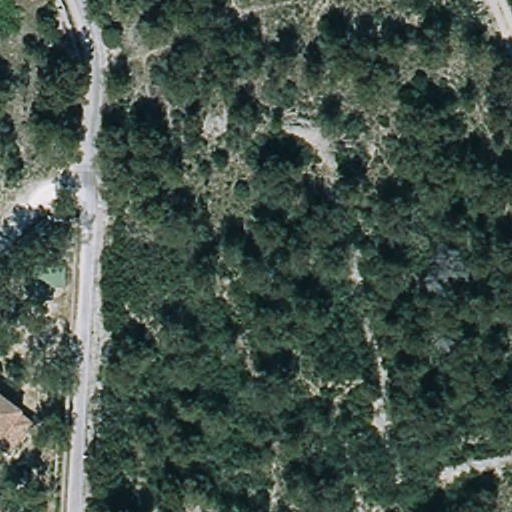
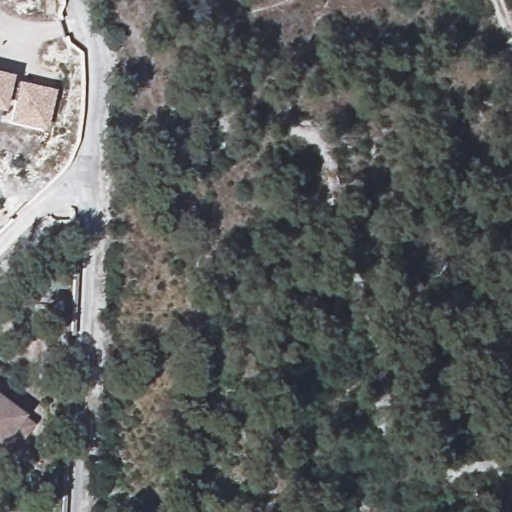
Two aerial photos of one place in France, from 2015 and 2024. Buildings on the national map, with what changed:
new [(12,74),(11,79),(18,81),(55,89),(47,129),(10,122),(13,101),(7,99),(4,110),(0,109),(0,71),(12,74)]
unchanged [(18,412),(17,415),(28,423),(7,454),(0,450),(0,399),(18,412)]

